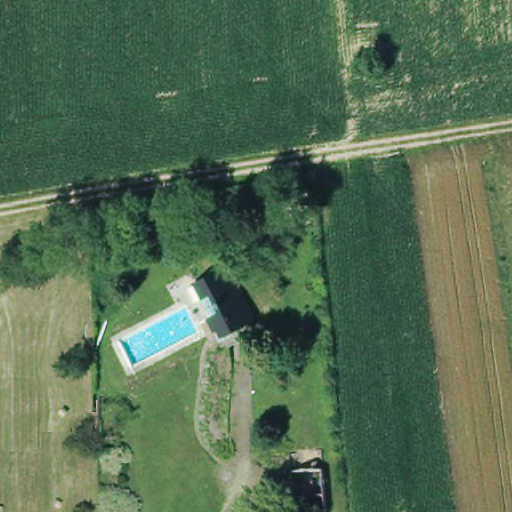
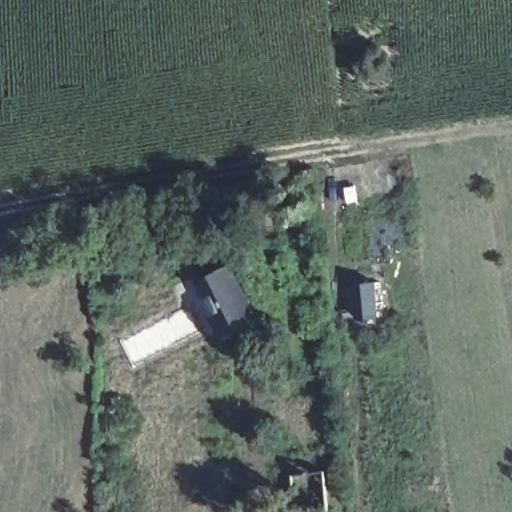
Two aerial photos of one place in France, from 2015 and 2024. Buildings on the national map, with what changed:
unchanged [(202,301),(206,299),(197,283),(212,273),(227,264),(252,306),(259,316),(254,319),(228,335),(223,327),(219,330),(216,324),(202,301)]

